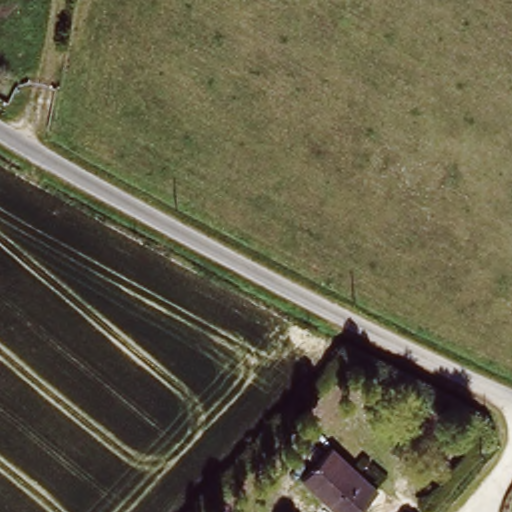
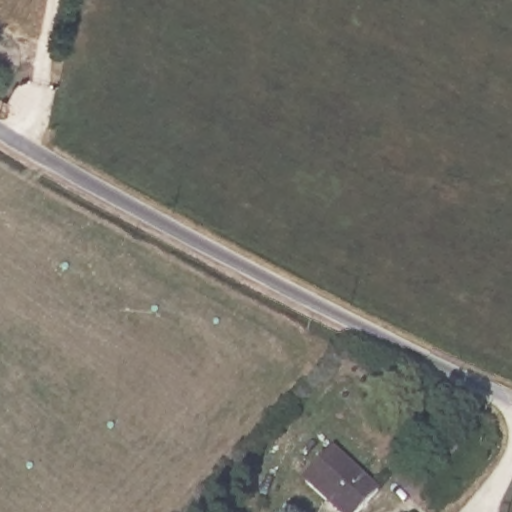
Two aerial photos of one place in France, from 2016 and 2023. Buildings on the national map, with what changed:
unchanged [(375,488),(357,512),(337,512),(300,485),(327,452),(375,488)]

